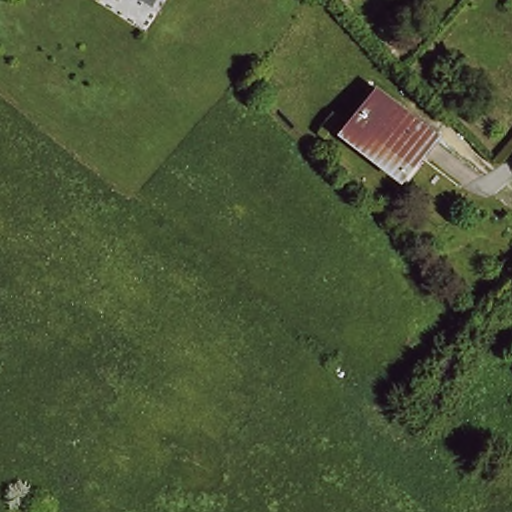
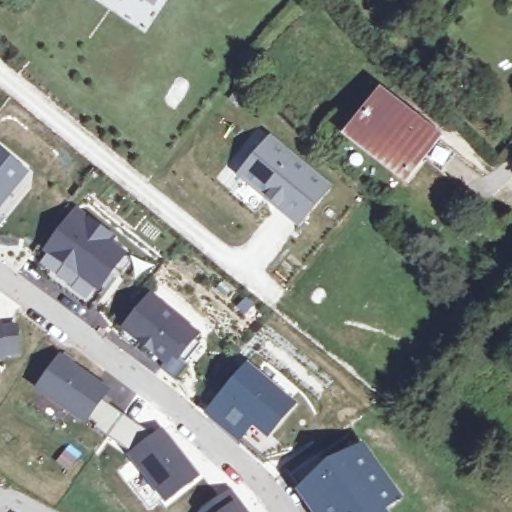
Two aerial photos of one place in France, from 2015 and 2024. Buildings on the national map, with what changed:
unchanged [(135,0),(147,0),(143,5),(135,0)]
unchanged [(149,0),(157,0),(155,4),(149,0)]
unchanged [(436,138),(407,177),(350,133),(381,96),(436,138)]
new [(270,135),(332,187),(298,229),(236,177),(270,135)]
new [(0,146),(31,172),(0,211),(0,146)]
new [(127,242),(103,281),(37,249),(70,207),(127,242)]
new [(121,331),(152,292),(201,335),(176,362),(173,359),(166,367),(121,331)]
new [(19,357),(0,358),(0,322),(13,321),(19,357)]
new [(109,387),(86,417),(33,387),(54,353),(109,387)]
new [(213,412),(248,367),(291,404),(269,433),(256,422),(243,437),(213,412)]
new [(131,453),(108,437),(123,416),(156,439),(163,435),(196,477),(168,498),(131,453)]
new [(404,499),(391,512),(314,512),(298,487),(365,439),(404,499)]
new [(228,492),(234,502),(243,512),(201,512),(228,492)]

